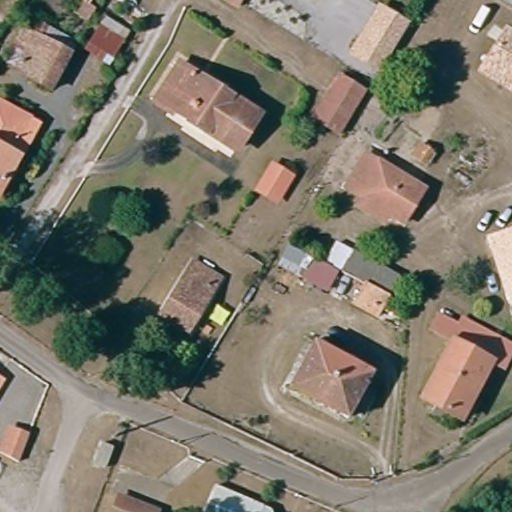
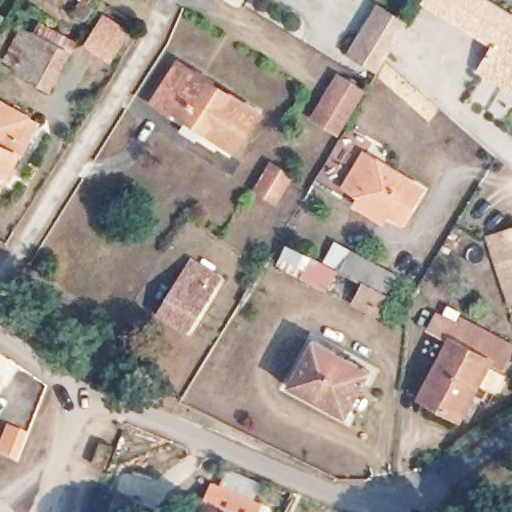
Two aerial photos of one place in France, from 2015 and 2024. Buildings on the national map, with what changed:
unchanged [(224,1),(225,0),(246,0),(240,10),(238,13),(222,4),(224,1)]
new [(425,0),(492,0),(512,12),(512,31),(507,28),(496,46),(423,4),(425,0)]
unchanged [(356,42),(376,9),(403,25),(383,58),(380,64),(375,71),(360,62),(347,55),(356,42)]
unchanged [(107,21),(129,35),(114,59),(92,46),(107,21)]
unchanged [(482,70),(486,64),(507,28),(512,31),(512,88),(482,70)]
unchanged [(50,38),(61,44),(57,53),(70,61),(48,95),(17,77),(30,51),(17,45),(24,35),(36,40),(45,45),(50,38)]
unchanged [(258,124),(235,156),(171,114),(167,117),(154,108),(180,71),(258,124)]
unchanged [(361,93),(336,135),(310,120),(332,81),(335,77),(346,85),(361,93)]
unchanged [(7,154),(11,156),(0,176),(0,105),(24,119),(7,154)]
demolished [(430,147),(421,163),(410,157),(419,141),(430,147)]
unchanged [(399,225),(384,216),(342,191),(351,178),(363,157),(376,165),(419,192),(399,225)]
unchanged [(258,200),(254,196),(266,178),(270,180),(280,186),(268,205),(258,200)]
unchanged [(488,255),(484,242),(512,232),(512,306),(507,308),(493,269),(488,255)]
unchanged [(337,275),(326,295),(276,267),(289,246),(337,275)]
unchanged [(378,321),(332,297),(342,278),(353,260),(367,267),(396,282),(385,301),(389,303),(378,321)]
unchanged [(193,261),(220,277),(187,330),(161,316),(193,261)]
unchanged [(431,402),(419,395),(451,341),(430,329),(437,313),(460,325),(463,320),(490,333),(491,332),(512,342),(512,360),(506,370),(492,363),(459,418),(453,414),(447,425),(426,413),(431,402)]
unchanged [(370,377),(344,424),(287,393),(314,344),(370,377)]
unchanged [(0,384),(0,381),(1,382),(0,384)]
demolished [(72,419),(70,426),(61,423),(64,416),(72,419)]
unchanged [(14,431),(28,435),(17,460),(6,453),(14,431)]
unchanged [(106,473),(91,466),(100,445),(115,450),(106,473)]
unchanged [(273,512),(204,512),(215,487),(272,511),(273,512)]
unchanged [(128,512),(114,512),(115,507),(128,512)]

